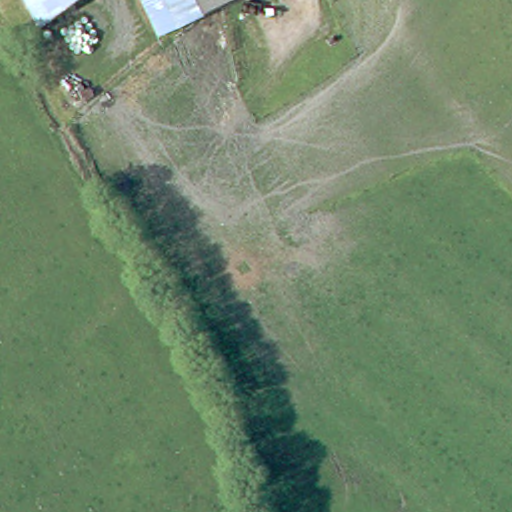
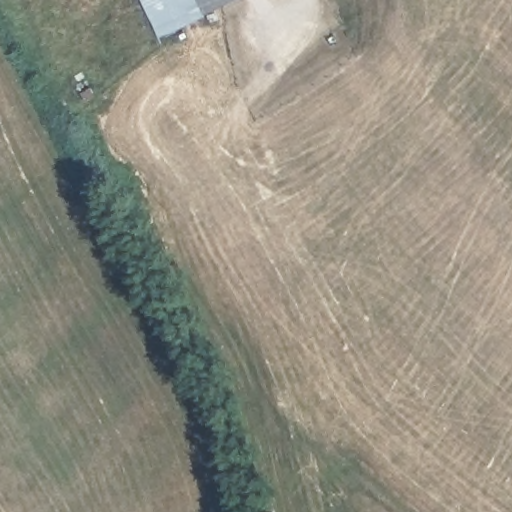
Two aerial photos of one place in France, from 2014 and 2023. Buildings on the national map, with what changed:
demolished [(29,0),(80,0),(46,26),(29,0)]
unchanged [(241,0),(208,15),(201,0),(241,0)]

